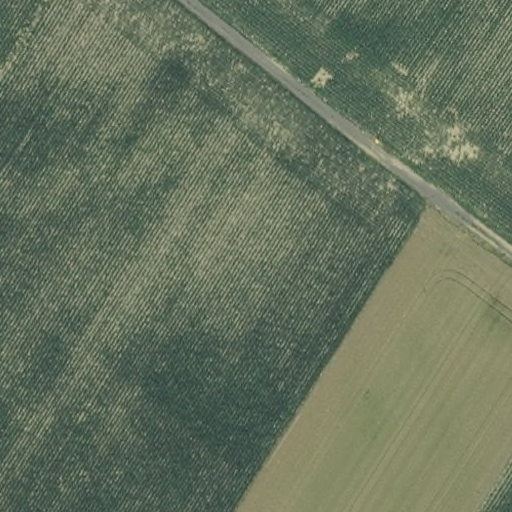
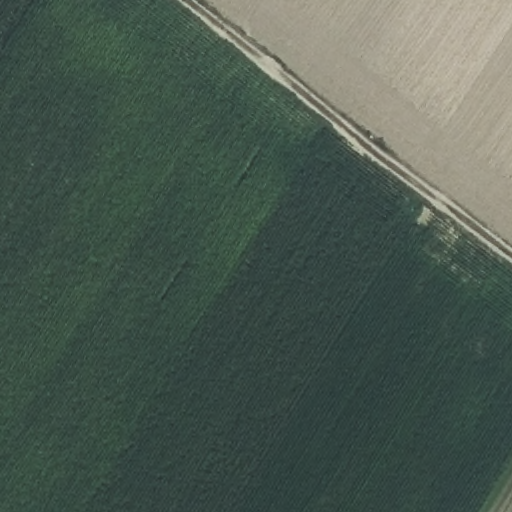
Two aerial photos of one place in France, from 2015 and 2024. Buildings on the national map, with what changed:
[]

